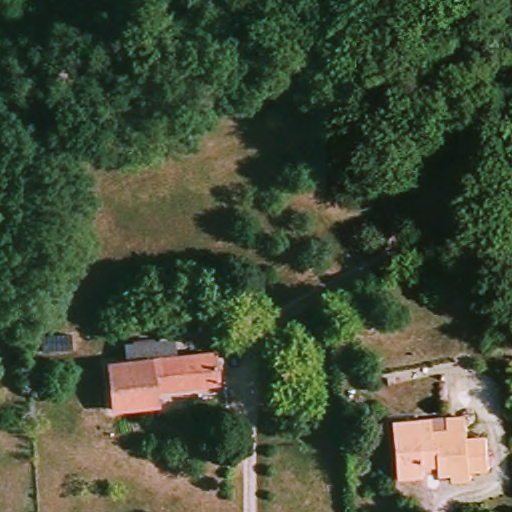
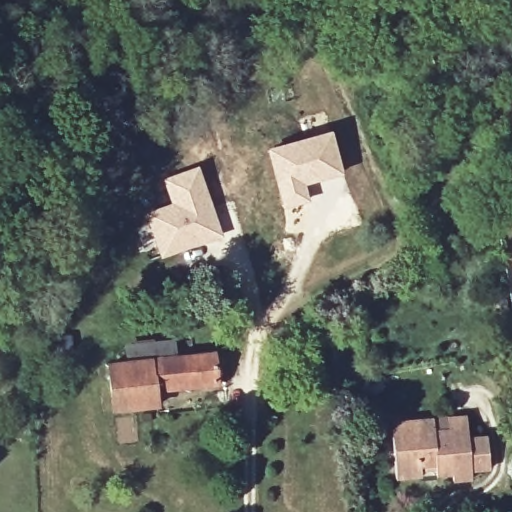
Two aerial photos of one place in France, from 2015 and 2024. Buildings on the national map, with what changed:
new [(331,129),(344,173),(306,185),(310,201),(284,210),(265,147),(331,129)]
new [(169,202),(161,178),(198,164),(224,237),(161,259),(144,212),(169,202)]
unchanged [(229,383),(166,391),(166,407),(122,412),(116,366),(143,364),(142,348),(180,344),(182,360),(227,356),(229,383)]
unchanged [(400,433),(399,419),(437,414),(440,430),(454,428),(453,416),(474,414),(475,434),(497,434),(499,470),(479,471),(480,478),(465,479),(451,479),(450,462),(432,464),(432,473),(424,474),(404,476),(400,433)]

